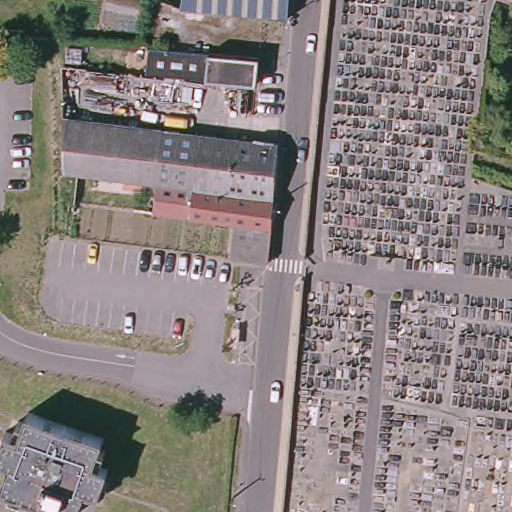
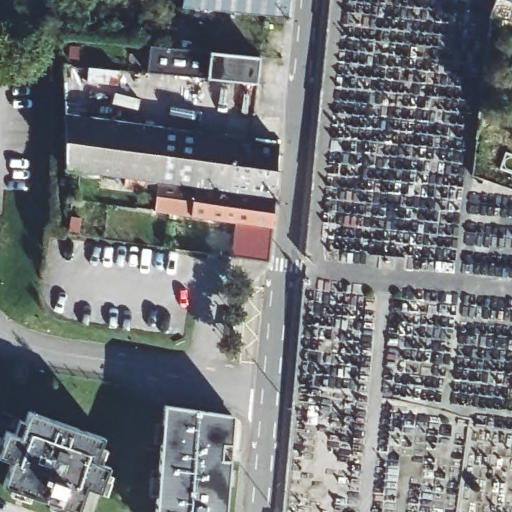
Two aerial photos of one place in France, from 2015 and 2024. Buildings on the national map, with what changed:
unchanged [(178,0),(286,0),(284,17),(177,7),(178,0)]
unchanged [(150,47),(171,49),(259,60),(256,84),(148,71),(150,47)]
unchanged [(274,140),(266,222),(229,218),(148,207),(148,206),(143,205),(144,199),(149,200),(153,178),(61,165),(61,162),(59,114),(274,140)]
unchanged [(225,252),(229,218),(266,222),(263,257),(249,255),(225,252)]
new [(223,512),(150,512),(160,408),(231,418),(223,512)]
unchanged [(92,461),(107,466),(98,492),(83,487),(74,511),(1,485),(9,460),(0,457),(0,442),(4,430),(18,435),(26,412),(100,438),(92,461)]

